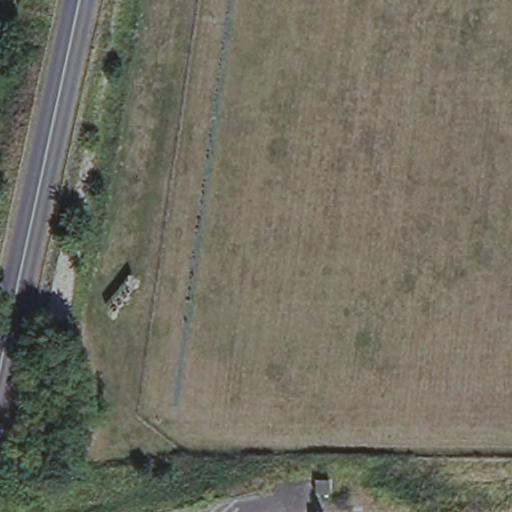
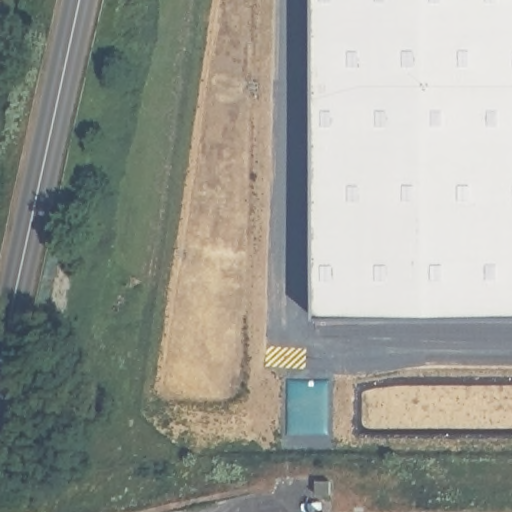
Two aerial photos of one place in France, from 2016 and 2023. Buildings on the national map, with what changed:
new [(317,318),(315,0),(512,0),(512,318),(317,318)]

